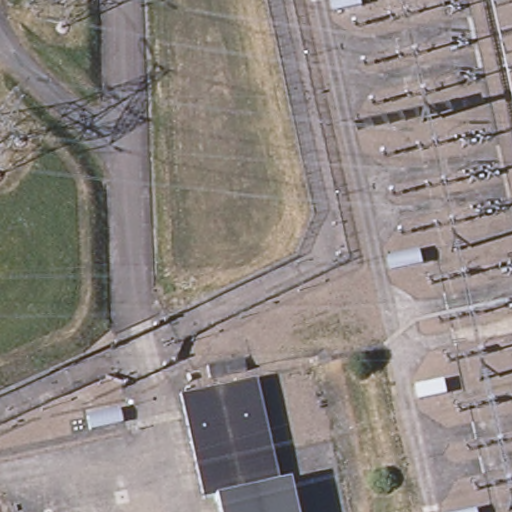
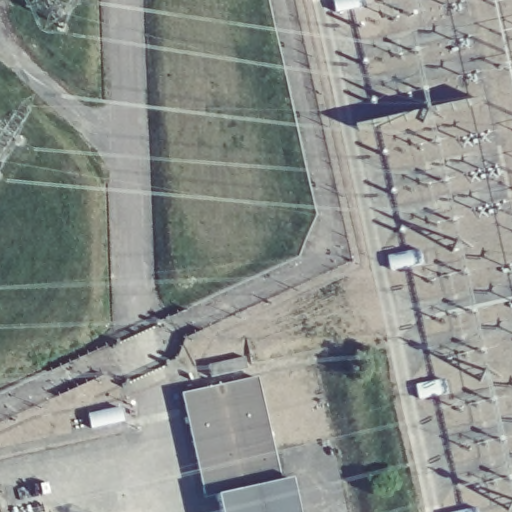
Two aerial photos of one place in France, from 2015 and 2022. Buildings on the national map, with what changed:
unchanged [(218,512),(215,496),(200,499),(182,393),(255,375),(288,497),(293,512),(218,512)]
unchanged [(9,512),(0,512),(0,504),(6,502),(9,512)]

